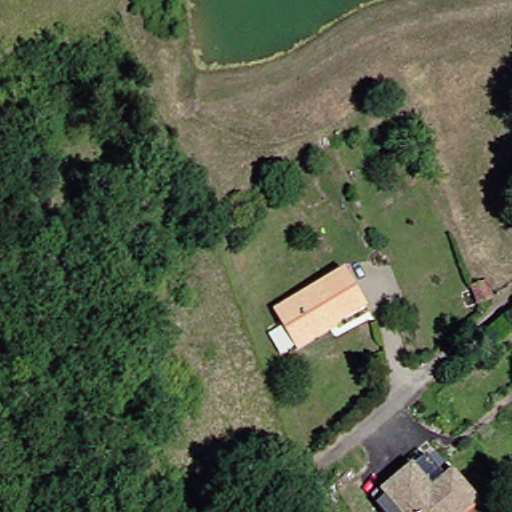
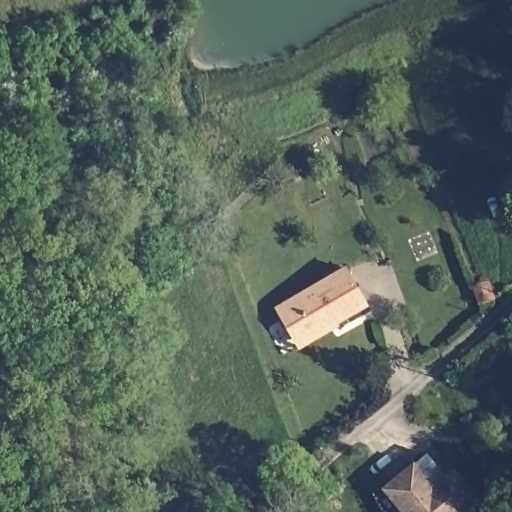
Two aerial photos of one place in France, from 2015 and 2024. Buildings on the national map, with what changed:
unchanged [(306,353),(299,343),(280,315),(347,268),(372,305),(342,325),(344,328),(306,353)]
unchanged [(480,505),(472,512),(401,512),(387,496),(423,466),(419,462),(433,450),(480,505)]

